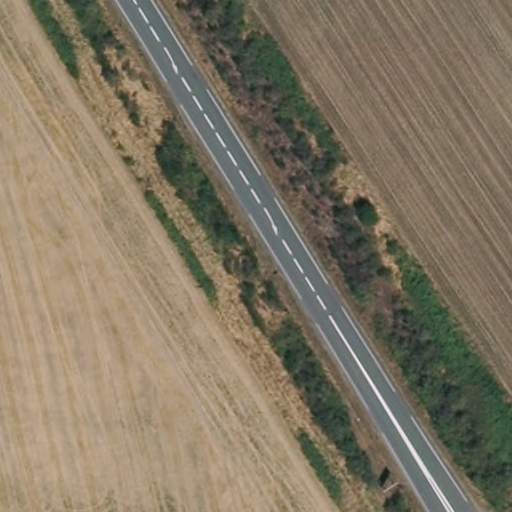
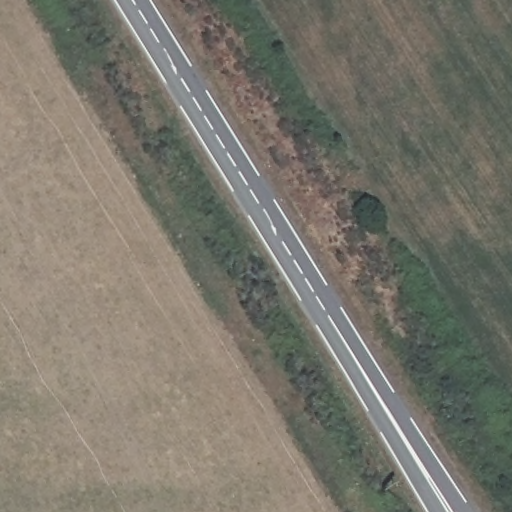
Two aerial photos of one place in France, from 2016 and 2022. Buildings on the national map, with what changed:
[]

